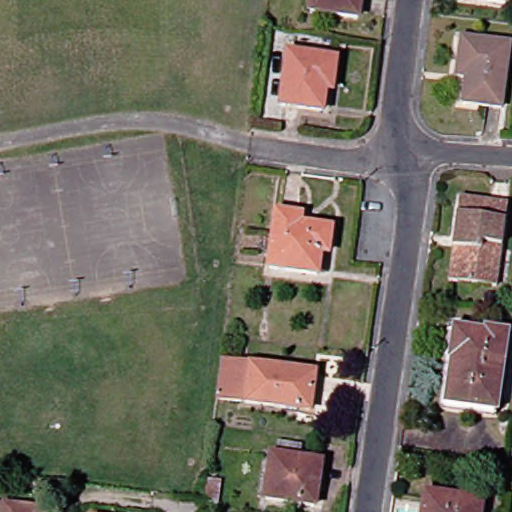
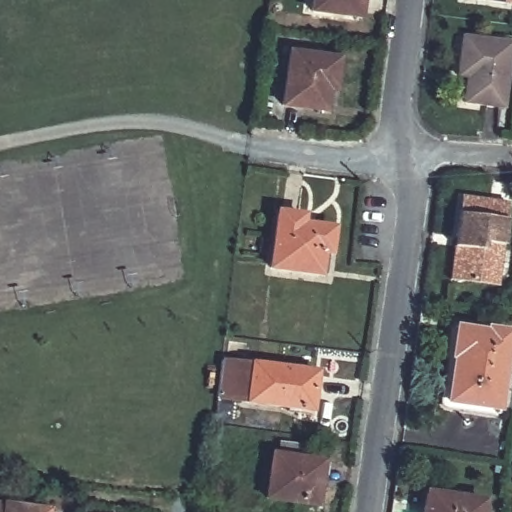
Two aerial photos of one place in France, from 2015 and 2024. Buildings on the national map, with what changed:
unchanged [(315,12),(317,0),(364,0),(362,19),(315,12)]
unchanged [(470,0),(512,0),(512,7),(470,2),(470,0)]
unchanged [(512,98),(511,110),(472,106),(474,81),(465,80),(470,41),(512,46),(512,98)]
unchanged [(333,109),(327,108),(326,113),(286,108),(292,56),(339,62),(333,109)]
unchanged [(454,239),(459,197),(506,202),(498,285),(457,281),(450,280),(454,239)]
unchanged [(321,275),(273,268),(280,214),(303,217),(302,225),(334,230),(331,255),(328,276),(321,275)]
unchanged [(461,355),(463,355),(456,400),(505,407),(504,415),(456,409),(452,405),(450,398),(455,356),(452,356),(457,324),(465,325),(461,355)]
unchanged [(463,355),(461,355),(465,325),(496,330),(498,327),(512,330),(512,362),(505,407),(456,400),(463,355)]
unchanged [(287,410),(288,402),(221,395),(225,357),(319,369),(314,405),(313,412),(287,410)]
unchanged [(320,500),(319,505),(270,498),(276,456),(279,441),(306,445),(305,460),(322,462),(332,463),(329,486),(326,486),(324,500),(320,500)]
unchanged [(425,492),(482,501),(480,512),(422,512),(425,492)]
unchanged [(5,505),(56,510),(56,512),(0,512),(0,505),(5,505)]

